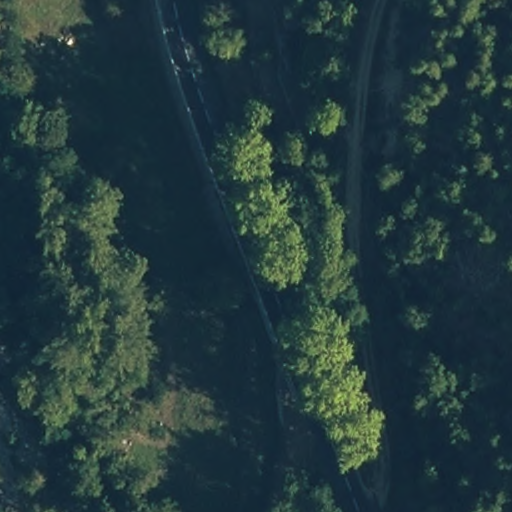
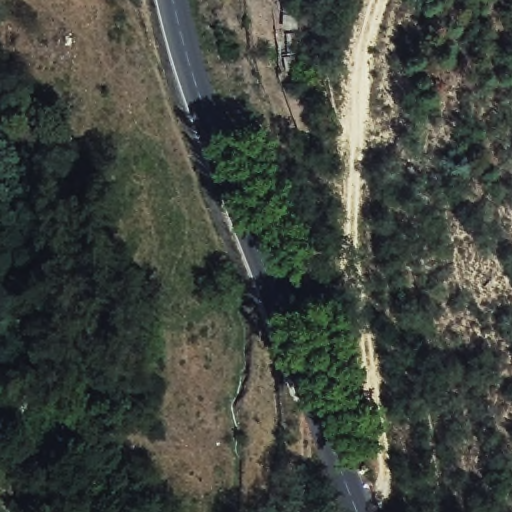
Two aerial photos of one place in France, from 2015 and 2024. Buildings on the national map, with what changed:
unchanged [(300,33),(306,59),(287,64),(279,40),(300,33)]

